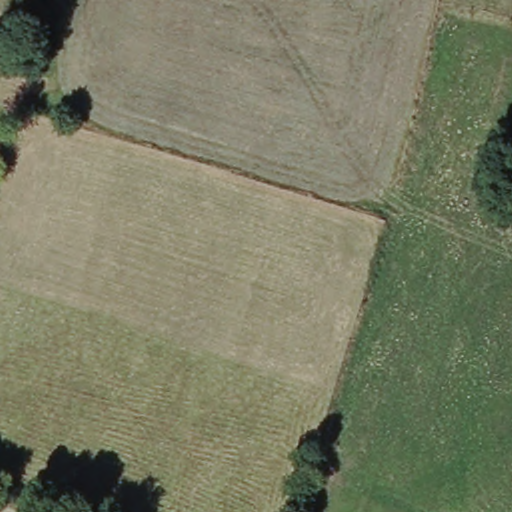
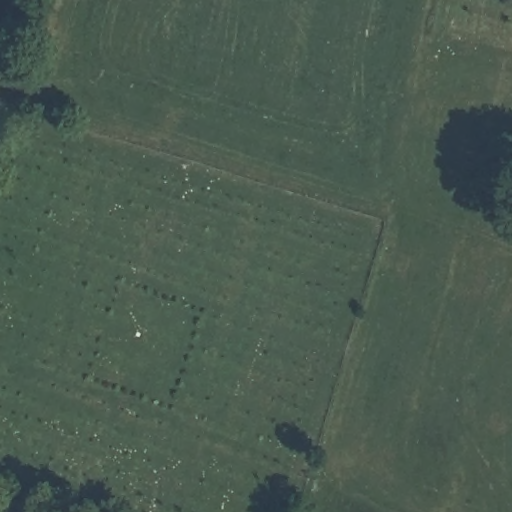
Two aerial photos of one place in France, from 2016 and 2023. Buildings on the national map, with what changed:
[]

